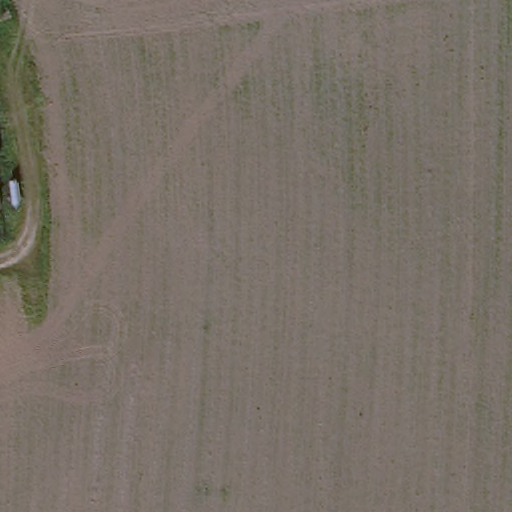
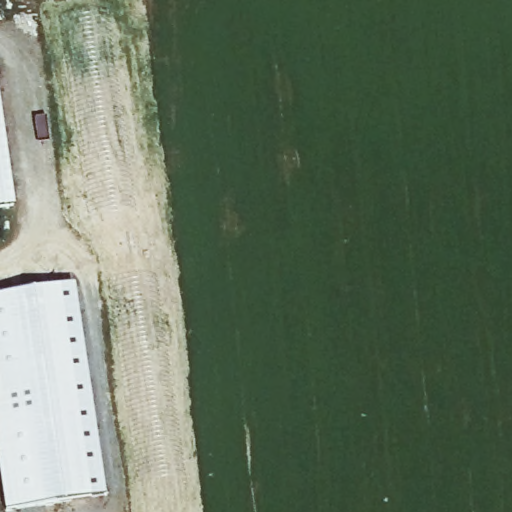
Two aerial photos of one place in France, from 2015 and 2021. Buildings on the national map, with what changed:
unchanged [(0,203),(0,201),(1,203),(0,203)]
new [(76,281),(106,494),(57,501),(26,288),(76,281)]
new [(57,501),(7,508),(0,459),(0,292),(26,288),(57,501)]

